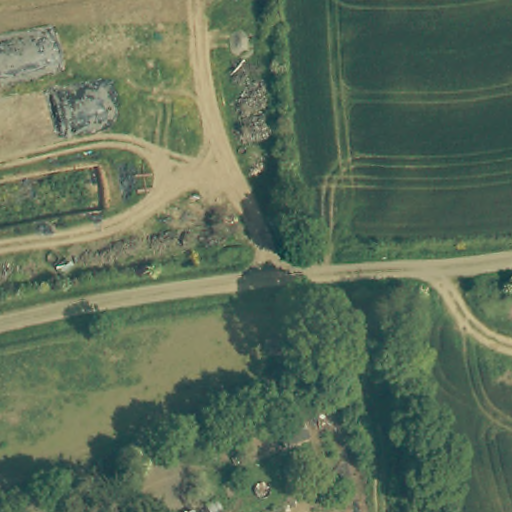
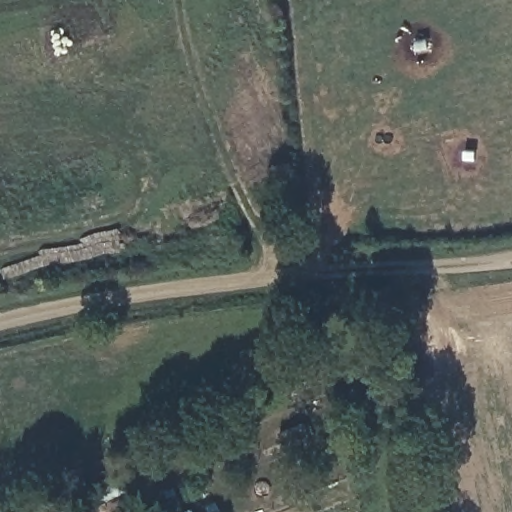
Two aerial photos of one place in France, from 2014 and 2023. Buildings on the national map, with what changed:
unchanged [(305,422),(311,435),(286,446),(280,433),(305,422)]

